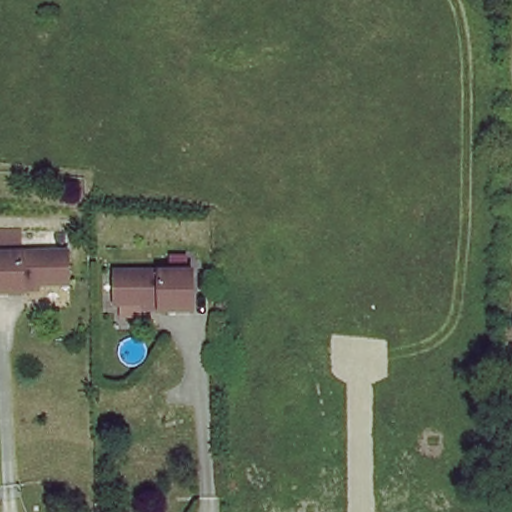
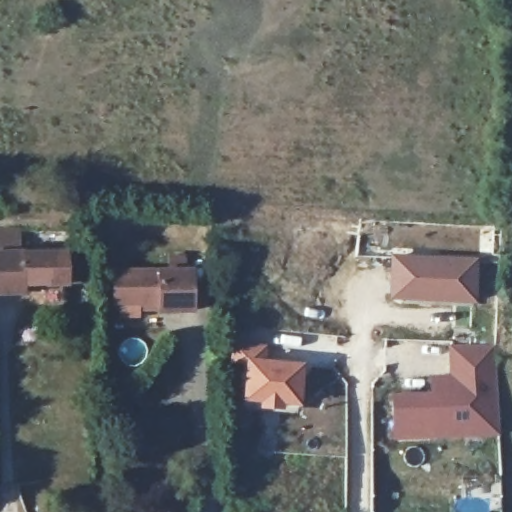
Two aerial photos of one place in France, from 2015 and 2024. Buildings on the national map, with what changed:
unchanged [(24,277),(23,290),(0,290),(0,223),(23,223),(23,245),(67,248),(66,277),(24,277)]
new [(390,254),(477,257),(475,303),(388,299),(390,254)]
unchanged [(194,306),(153,308),(153,295),(108,293),(108,271),(192,270),(194,306)]
new [(246,363),(232,363),(234,342),(267,346),(265,359),(303,364),(299,406),(283,405),(283,410),(259,408),(258,402),(242,401),(246,363)]
new [(389,393),(429,391),(429,376),(449,374),(449,344),(494,344),(497,436),(392,440),(389,393)]

